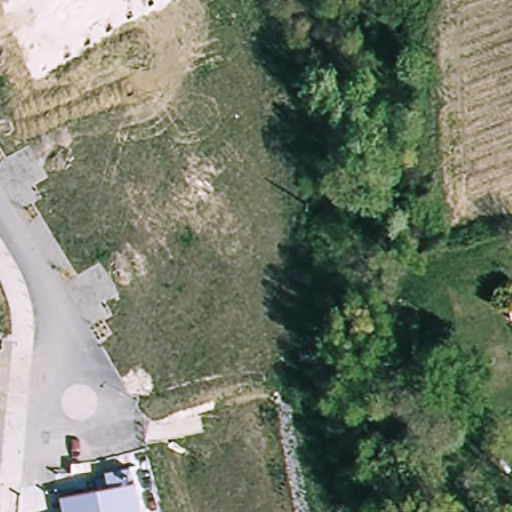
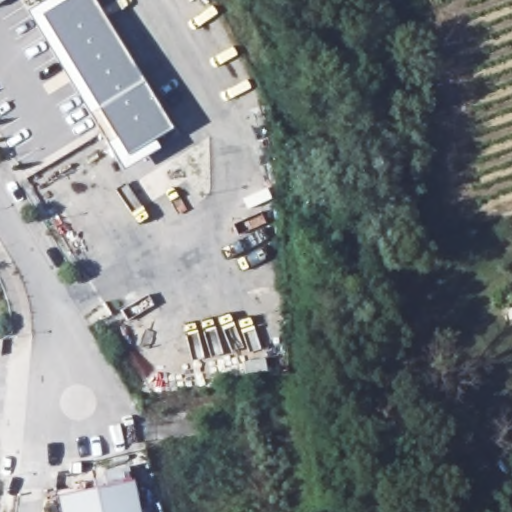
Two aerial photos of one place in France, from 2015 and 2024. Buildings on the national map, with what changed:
new [(93,0),(171,129),(126,156),(114,137),(113,138),(38,14),(62,0),(93,0)]
unchanged [(60,497),(133,483),(140,512),(63,512),(60,497)]

